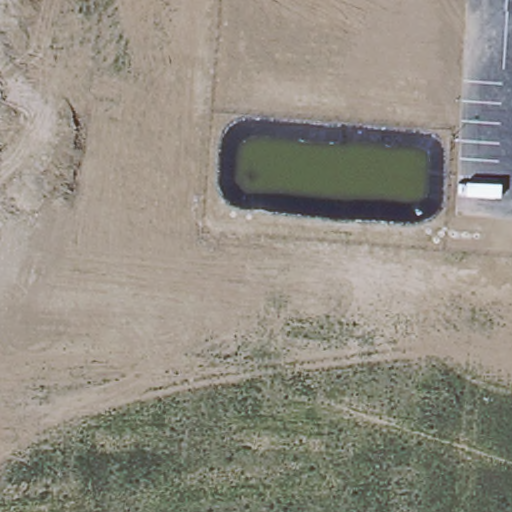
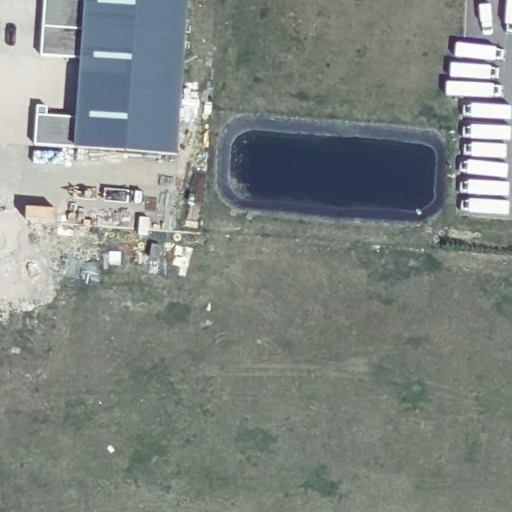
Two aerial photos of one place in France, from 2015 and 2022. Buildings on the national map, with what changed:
new [(80,0),(85,1),(86,0),(189,0),(178,157),(35,145),(37,107),(47,107),(47,117),(77,119),(81,59),(41,56),(45,0),(80,0)]

